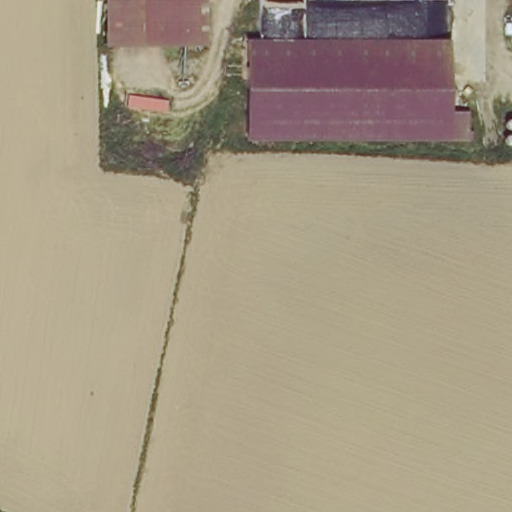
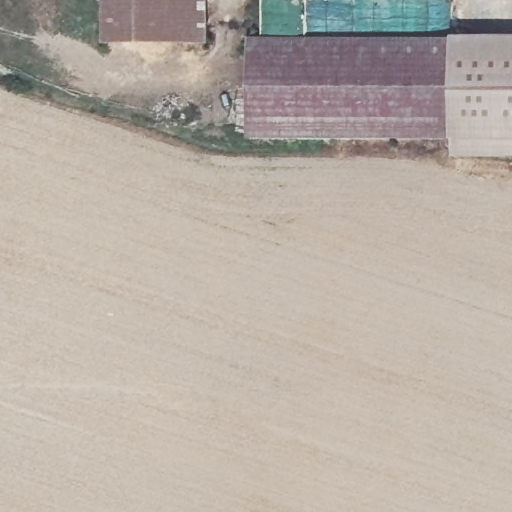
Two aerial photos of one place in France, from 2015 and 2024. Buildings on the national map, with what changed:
unchanged [(104,0),(206,0),(205,44),(102,42),(104,0)]
unchanged [(253,137),(256,36),(284,37),(308,38),(456,44),(453,116),(472,118),(471,145),(266,138),(253,137)]
new [(512,43),(512,156),(452,157),(453,144),(471,145),(472,118),(453,116),(456,44),(512,43)]

